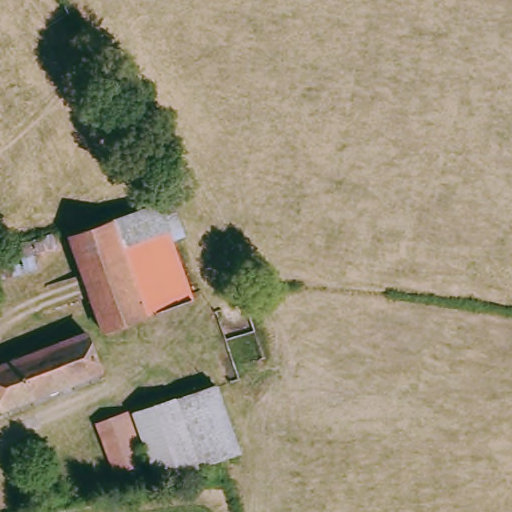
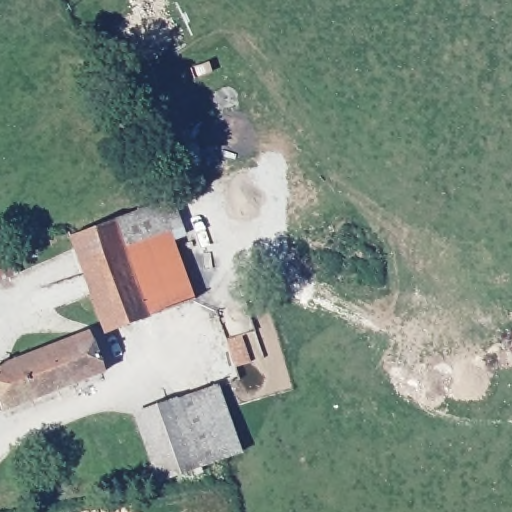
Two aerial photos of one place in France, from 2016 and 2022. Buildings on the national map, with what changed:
unchanged [(83,269),(74,236),(110,225),(177,205),(187,239),(175,242),(184,275),(194,306),(164,315),(103,333),(83,269)]
unchanged [(0,283),(0,254),(55,235),(61,252),(40,261),(46,271),(0,283)]
unchanged [(60,346),(87,336),(100,375),(74,386),(60,346)]
unchanged [(74,386),(5,413),(0,398),(0,370),(60,346),(74,386)]
unchanged [(236,451),(163,477),(138,412),(216,388),(236,451)]
unchanged [(119,475),(99,424),(130,410),(148,462),(143,465),(147,476),(123,484),(119,475)]

